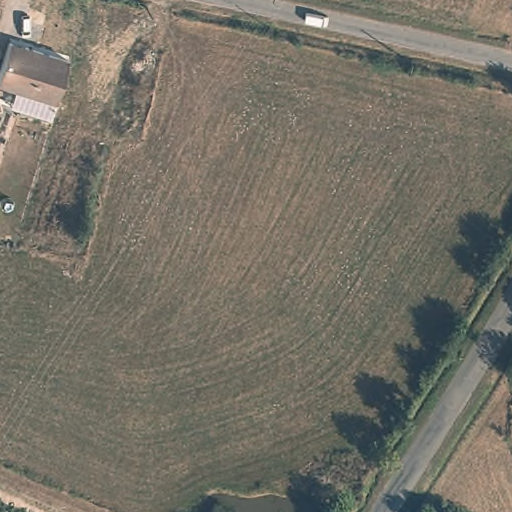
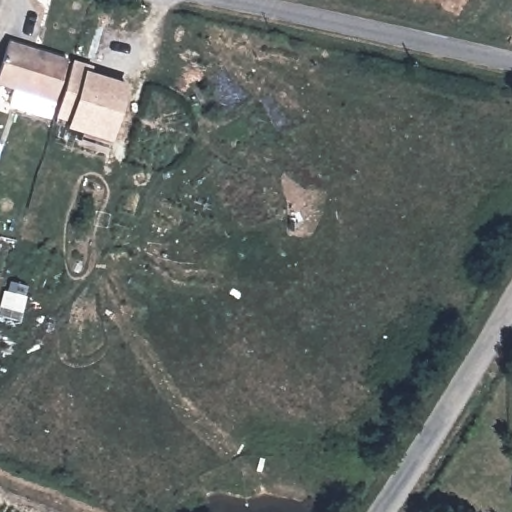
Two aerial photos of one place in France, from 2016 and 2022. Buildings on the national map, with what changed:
unchanged [(68,61),(55,101),(0,83),(0,68),(9,42),(68,61)]
new [(94,65),(93,71),(130,83),(112,141),(67,128),(68,121),(56,117),(74,59),(94,65)]

